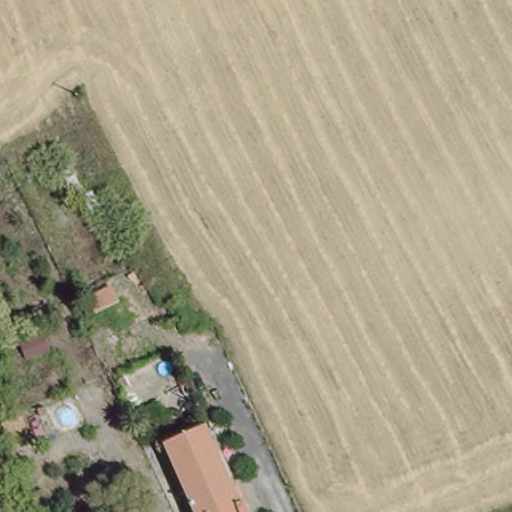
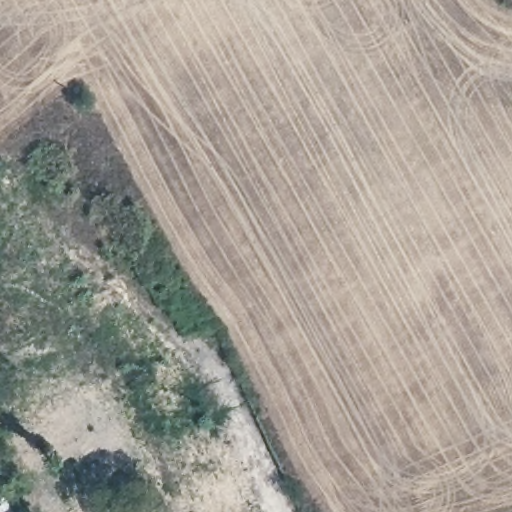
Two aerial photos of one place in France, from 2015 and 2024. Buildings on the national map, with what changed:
demolished [(239,486),(252,512),(202,512),(172,445),(207,429),(234,488),(239,486)]

